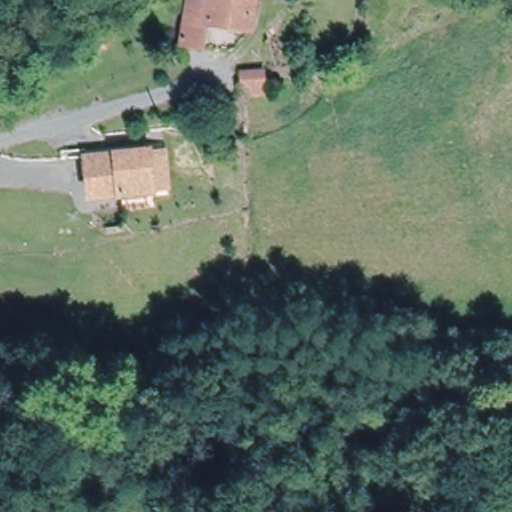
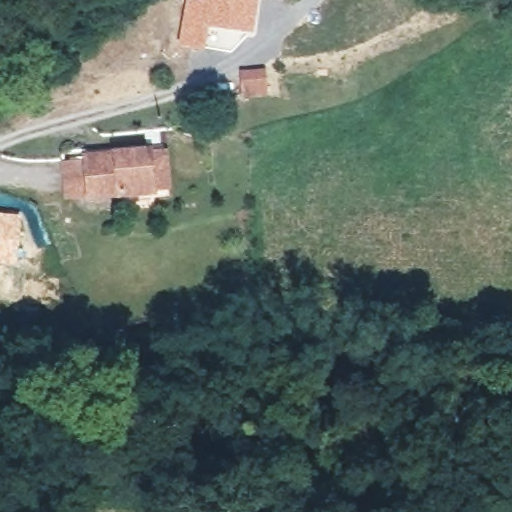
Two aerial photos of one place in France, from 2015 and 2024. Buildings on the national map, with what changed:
unchanged [(205,21),(202,45),(180,42),(186,0),(253,0),(249,28),(205,21)]
unchanged [(262,72),(264,97),(242,99),(240,74),(262,72)]
unchanged [(85,159),(149,152),(164,151),(167,192),(152,194),(89,200),(85,159)]
new [(16,266),(0,265),(0,212),(21,214),(16,266)]

